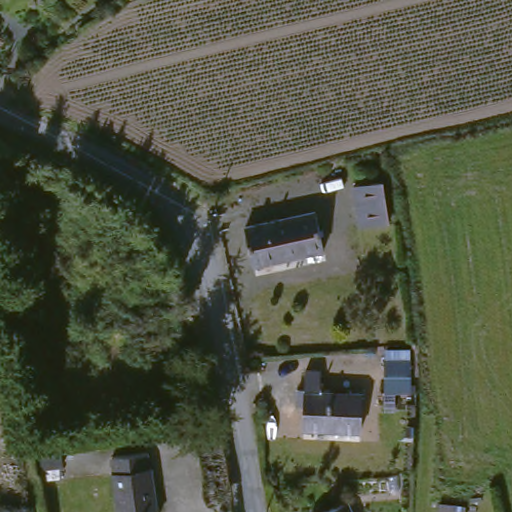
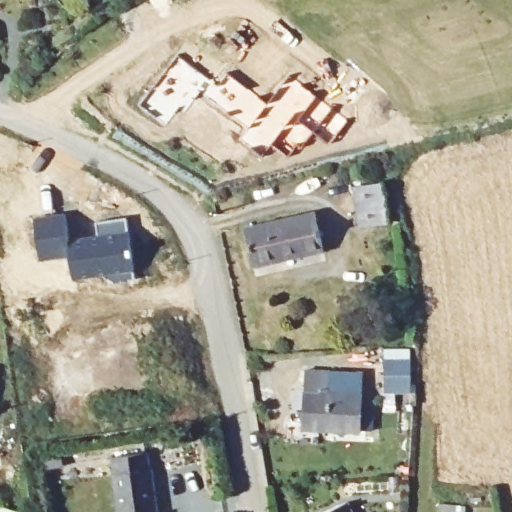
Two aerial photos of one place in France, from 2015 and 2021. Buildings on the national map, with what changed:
unchanged [(0,27),(2,40),(0,40),(0,28),(0,27)]
unchanged [(383,182),(390,222),(360,226),(353,187),(383,182)]
unchanged [(315,212),(323,252),(285,260),(285,258),(253,265),(245,228),(315,212)]
new [(65,214),(69,240),(98,235),(96,221),(127,216),(135,278),(114,281),(102,273),(74,276),(70,255),(40,258),(34,218),(65,214)]
unchanged [(416,360),(416,391),(390,391),(390,360),(416,360)]
unchanged [(365,375),(365,430),(308,428),(311,370),(365,375)]
unchanged [(119,469),(117,453),(148,450),(151,465),(155,465),(161,512),(120,512),(114,468),(119,469)]
unchanged [(44,456),(46,469),(22,471),(20,459),(44,456)]
unchanged [(347,502),(351,512),(324,512),(347,502)]

